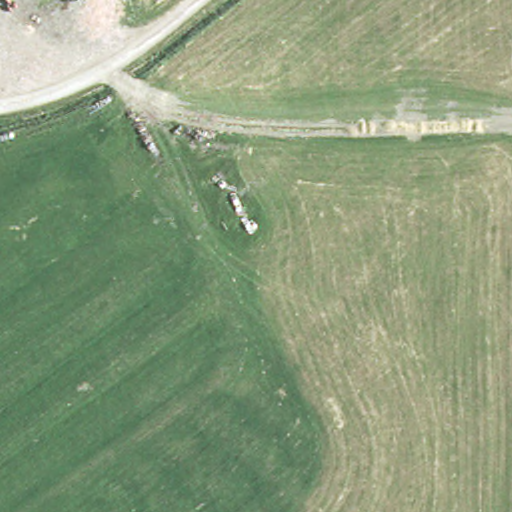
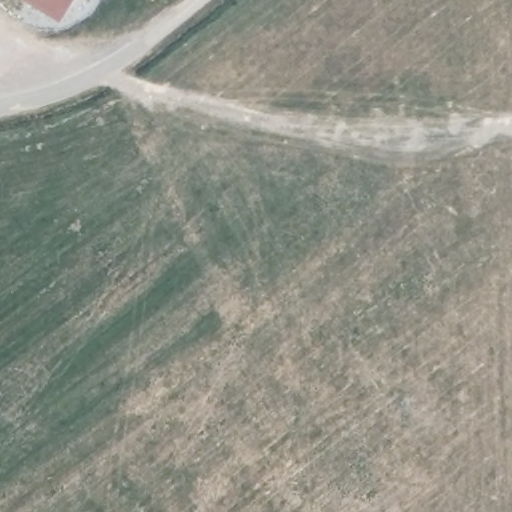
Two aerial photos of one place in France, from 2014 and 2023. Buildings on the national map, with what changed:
new [(27,0),(73,0),(60,20),(27,0)]

